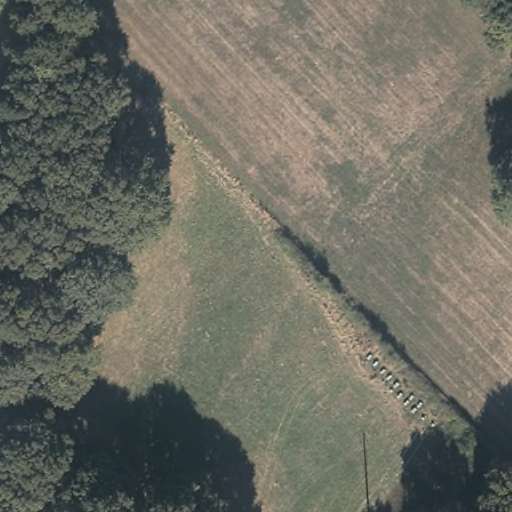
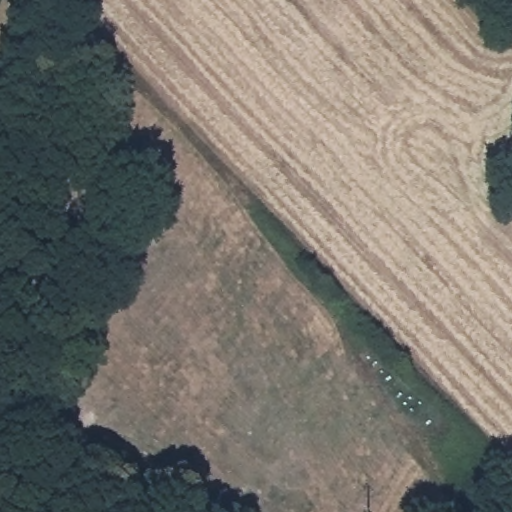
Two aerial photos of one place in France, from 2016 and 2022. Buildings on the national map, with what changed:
[]

